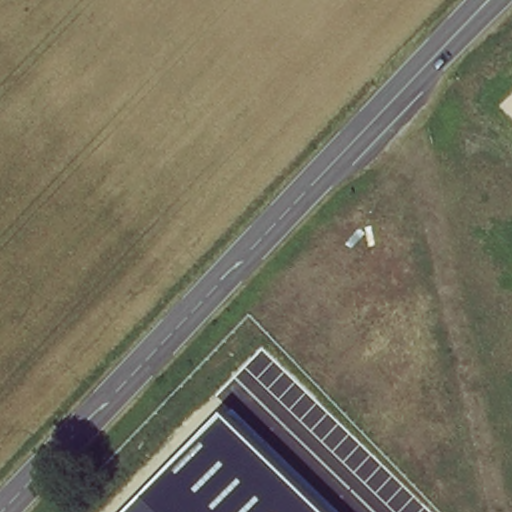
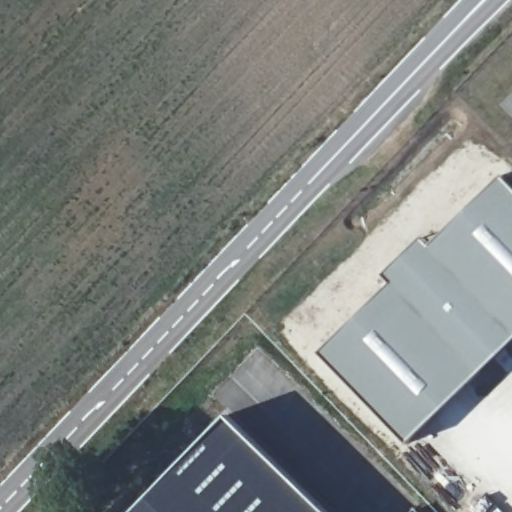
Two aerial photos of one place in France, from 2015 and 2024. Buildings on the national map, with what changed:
new [(418,237),(426,244),(498,174),(512,189),(512,338),(403,444),(314,352),(387,282),(379,274),(418,237)]
unchanged [(230,414),(329,512),(135,512),(230,414)]

